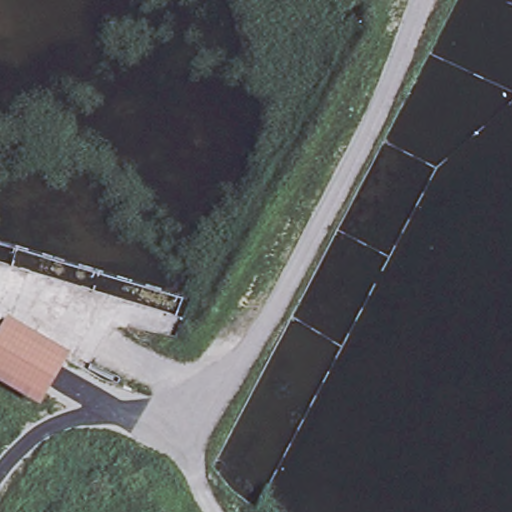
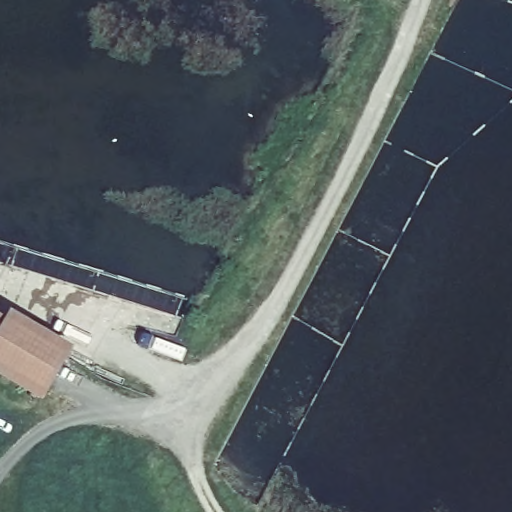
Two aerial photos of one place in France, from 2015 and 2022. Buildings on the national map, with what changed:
unchanged [(43,401),(0,375),(0,309),(8,311),(73,349),(43,401)]

